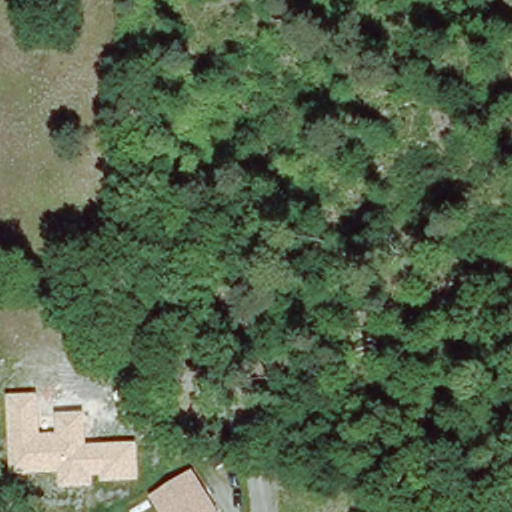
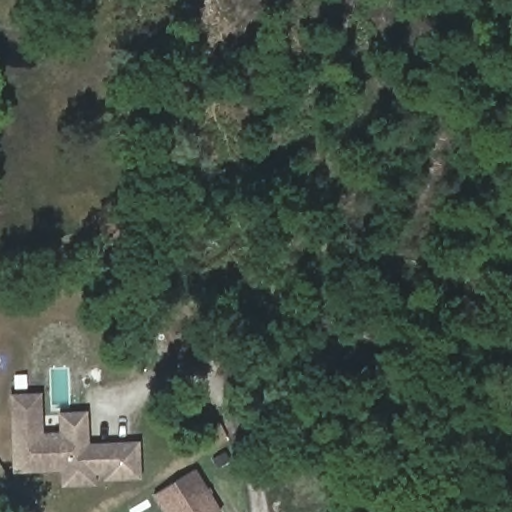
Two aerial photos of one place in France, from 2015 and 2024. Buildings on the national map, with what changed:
unchanged [(57,413),(87,411),(88,443),(139,440),(141,480),(103,481),(103,474),(95,474),(95,485),(61,487),(60,472),(13,474),(9,394),(41,393),(42,433),(58,432),(57,413)]
unchanged [(162,512),(151,496),(195,469),(223,511),(221,512),(162,512)]

